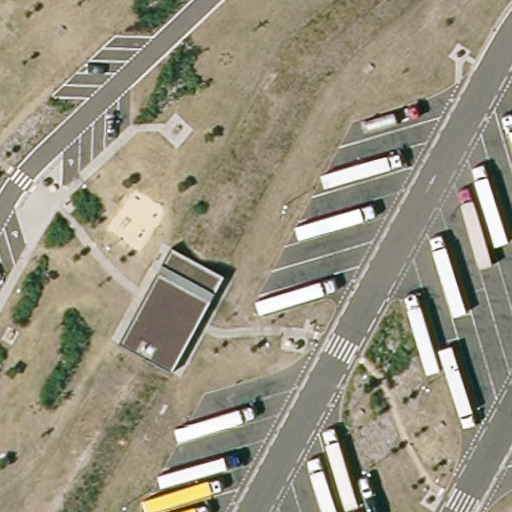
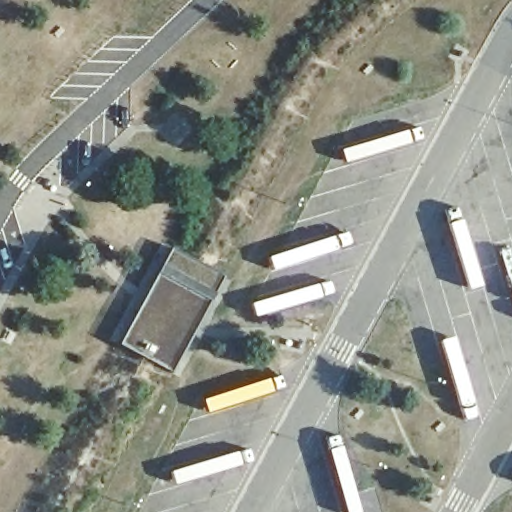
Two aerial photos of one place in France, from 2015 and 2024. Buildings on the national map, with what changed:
unchanged [(171,245),(226,274),(172,371),(119,343),(171,245)]

